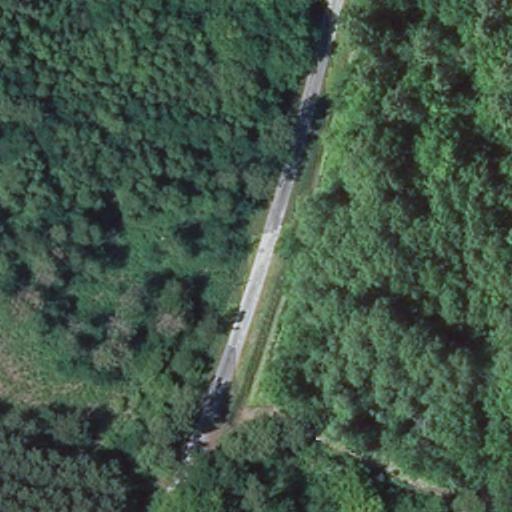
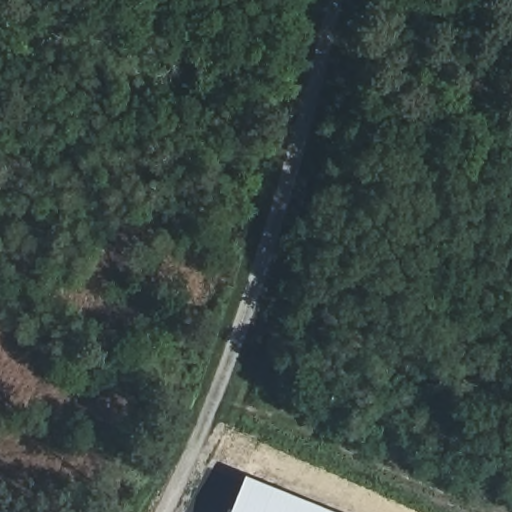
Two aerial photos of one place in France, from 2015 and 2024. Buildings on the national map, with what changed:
new [(233,512),(248,476),(337,512),(233,512)]

